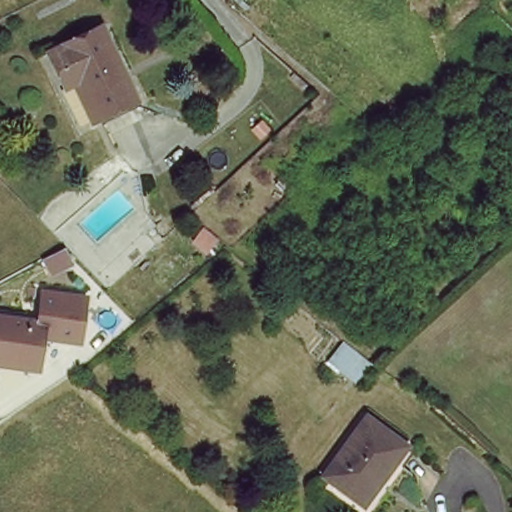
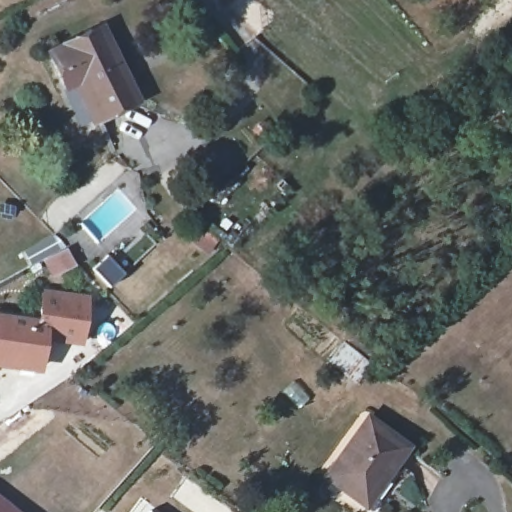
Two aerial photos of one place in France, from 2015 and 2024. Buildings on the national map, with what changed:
unchanged [(74,76),(63,82),(48,49),(102,21),(138,92),(100,111),(93,115),(74,76)]
unchanged [(45,287),(90,294),(82,342),(48,338),(43,368),(0,365),(0,311),(39,316),(45,287)]
unchanged [(359,499),(324,474),(370,413),(413,446),(389,479),(369,506),(359,499)]
new [(0,495),(21,512),(0,512),(0,495)]
new [(150,511),(151,512),(149,512),(150,511)]

